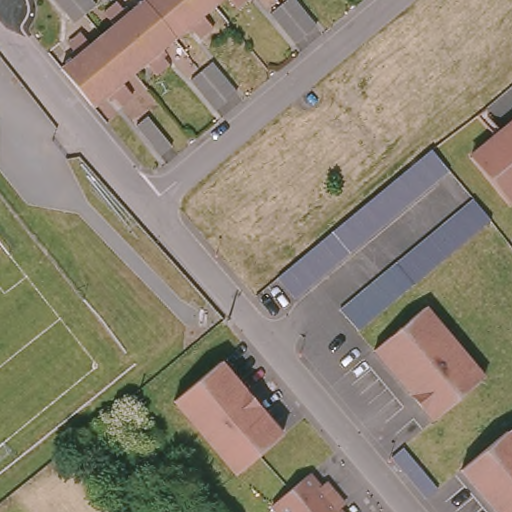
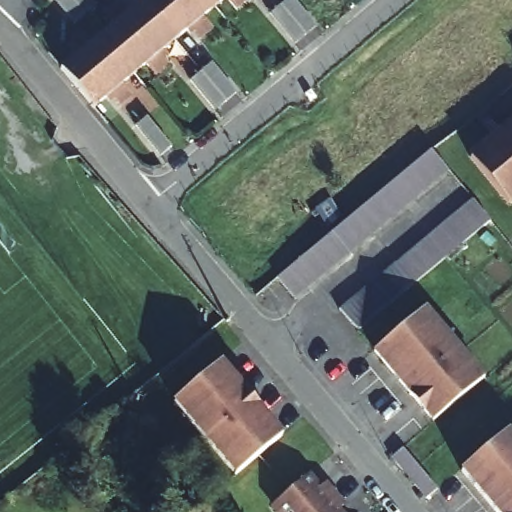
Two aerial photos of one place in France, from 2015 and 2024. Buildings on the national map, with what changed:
unchanged [(88,0),(91,3),(93,6),(82,15),(72,23),(70,21),(52,0),(88,0)]
unchanged [(141,0),(180,0),(156,21),(139,1),(141,0)]
unchanged [(189,28),(172,41),(156,21),(180,0),(207,0),(213,7),(201,17),(212,30),(199,40),(189,28)]
unchanged [(207,0),(221,0),(213,7),(207,0)]
unchanged [(227,0),(247,0),(236,10),(227,0)]
unchanged [(280,6),(287,0),(293,0),(317,27),(305,36),(295,44),(270,14),(280,6)]
unchanged [(102,38),(100,35),(112,25),(101,13),(114,1),(125,14),(139,1),(156,21),(116,55),(102,38)]
unchanged [(156,77),(145,65),(133,75),(116,55),(156,21),(172,41),(157,55),(167,68),(156,77)]
unchanged [(75,89),(75,90),(59,70),(76,56),(65,44),(79,32),(89,45),(100,35),(102,38),(116,55),(104,65),(75,89)]
unchanged [(120,108),(109,95),(93,109),(92,110),(75,90),(75,89),(104,65),(116,55),(133,75),(122,84),(133,96),(120,108)]
unchanged [(191,81),(201,73),(212,63),(237,93),(226,103),(217,111),(191,81)]
unchanged [(147,118),(172,148),(161,157),(135,127),(147,118)]
unchanged [(41,129),(50,121),(51,122),(57,129),(47,136),(41,129)]
unchanged [(512,122),(512,198),(509,200),(472,155),(512,122)]
unchanged [(283,274),(288,269),(297,261),(309,251),(320,242),(331,233),(342,224),(352,215),(365,205),(376,196),(387,187),(398,177),(408,168),(420,159),(431,149),(449,172),(437,182),(427,191),(416,200),(410,205),(405,209),(395,218),(383,227),(371,237),(361,246),(357,250),(350,255),(338,265),(330,272),(328,274),(317,284),(307,292),(304,296),(296,303),(277,279),(283,274)]
unchanged [(372,325),(361,335),(342,313),(354,304),(365,295),(376,286),(387,276),(397,267),(409,258),(410,257),(419,249),(431,238),(436,234),(442,230),(452,220),(463,212),(464,211),(474,202),(491,223),(481,232),(480,232),(470,240),(459,250),(449,259),(440,266),(437,269),(426,279),(415,288),(404,297),(393,307),(382,316),(372,325)]
unchanged [(427,307),(487,378),(437,419),(377,349),(427,307)]
unchanged [(237,476),(174,402),(219,364),(282,437),(237,476)]
unchanged [(509,431),(512,435),(512,512),(496,512),(461,470),(509,431)]
unchanged [(428,498),(411,478),(393,458),(405,449),(422,469),(439,488),(428,498)]
unchanged [(309,475),(321,489),(327,484),(336,494),(314,512),(276,512),(272,507),(309,475)]
unchanged [(336,494),(345,504),(339,509),(341,512),(314,512),(336,494)]

